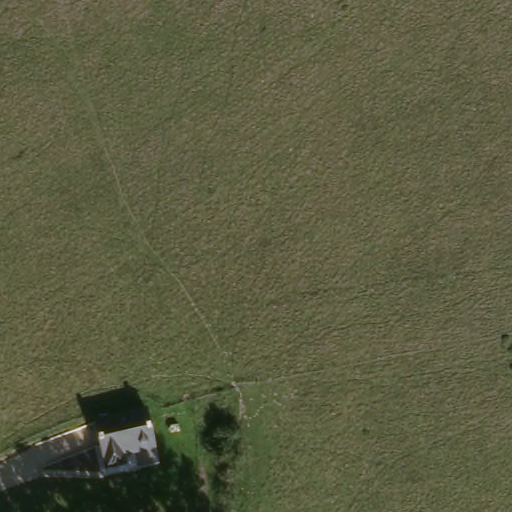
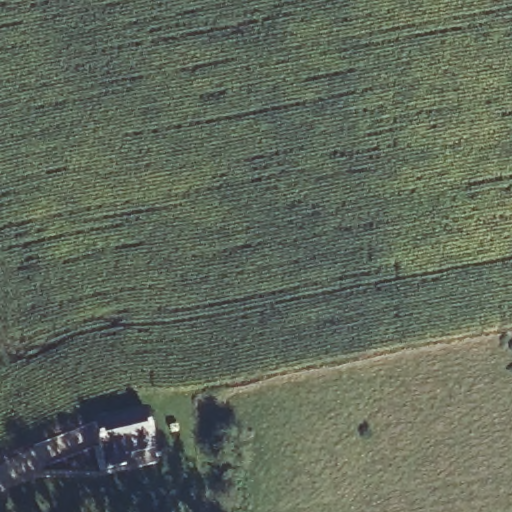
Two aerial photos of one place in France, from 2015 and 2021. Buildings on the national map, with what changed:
unchanged [(142,410),(152,450),(123,457),(125,465),(103,470),(92,421),(142,410)]

